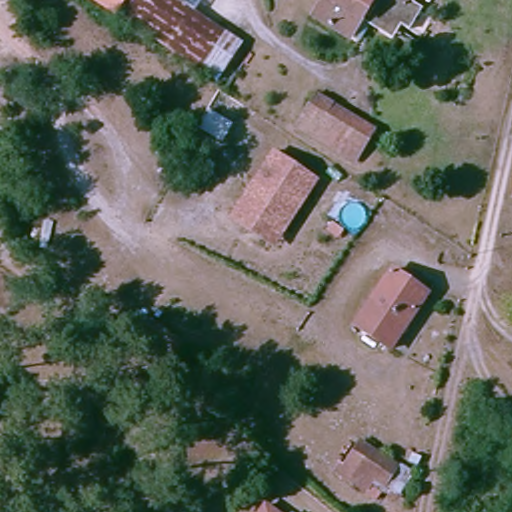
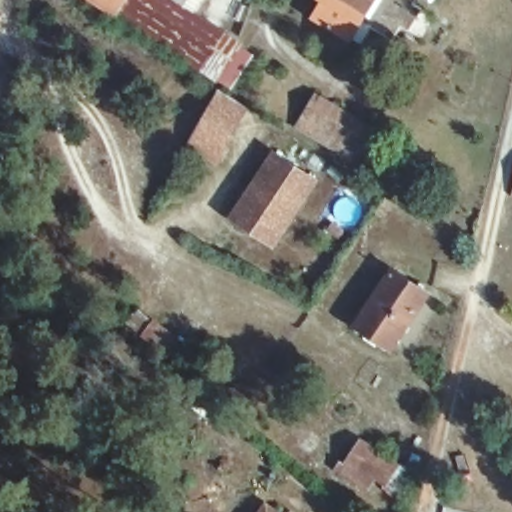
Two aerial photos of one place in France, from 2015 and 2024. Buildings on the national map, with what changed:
unchanged [(168,49),(95,0),(183,0),(194,8),(168,49)]
unchanged [(183,0),(199,0),(194,8),(183,0)]
unchanged [(374,10),(355,44),(319,25),(330,5),(326,2),(327,0),(412,0),(424,6),(409,31),(374,10)]
unchanged [(244,42),(218,84),(168,49),(194,8),(244,42)]
new [(249,110),(217,167),(185,149),(218,90),(249,110)]
unchanged [(375,130),(355,162),(299,129),(318,96),(375,130)]
unchanged [(254,227),(234,214),(276,150),(317,179),(283,228),(274,241),(254,227)]
unchanged [(360,326),(384,288),(394,270),(428,294),(417,312),(393,348),(360,326)]
unchanged [(393,459),(382,477),(371,470),(363,482),(343,468),(361,438),(393,459)]
unchanged [(266,510),(268,512),(265,512),(266,510)]

